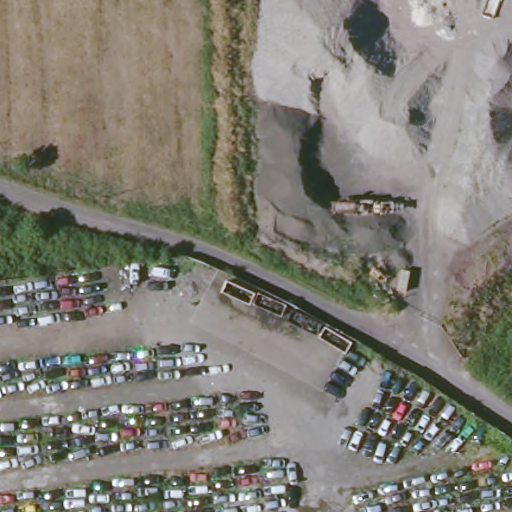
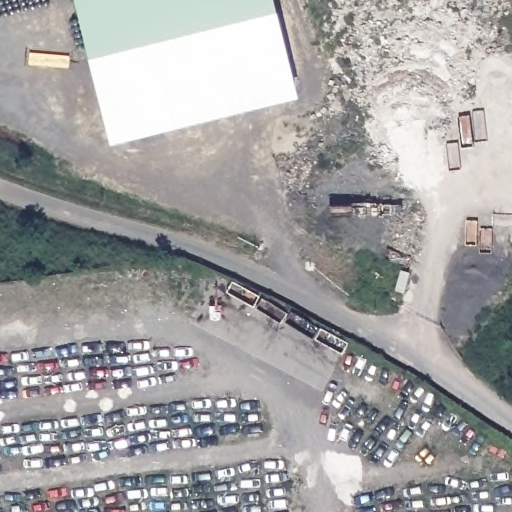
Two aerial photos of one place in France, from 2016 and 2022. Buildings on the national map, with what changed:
new [(111,140),(76,0),(274,0),(298,93),(111,140)]

